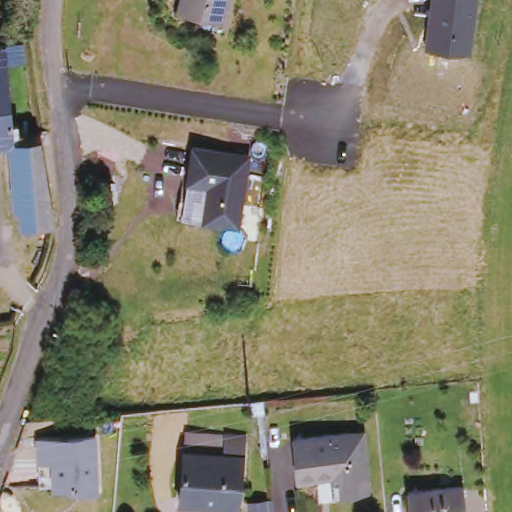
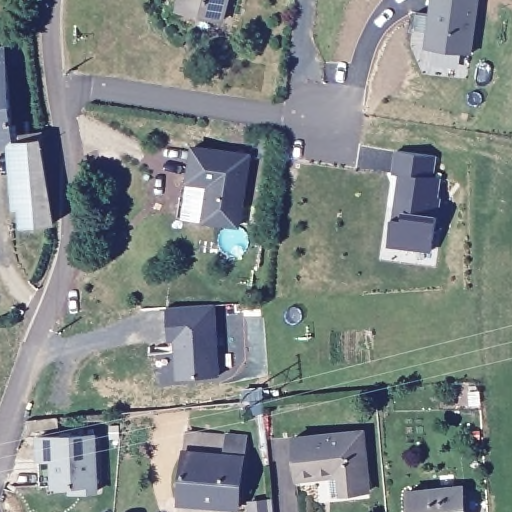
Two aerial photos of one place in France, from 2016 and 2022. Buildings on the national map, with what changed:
unchanged [(180,6),(181,0),(225,0),(219,24),(203,20),(204,14),(180,6)]
unchanged [(424,47),(429,0),(477,0),(471,54),(424,47)]
unchanged [(0,143),(0,49),(1,49),(12,142),(0,143)]
unchanged [(28,229),(25,205),(19,206),(12,142),(44,139),(56,226),(28,229)]
unchanged [(248,152),(238,223),(204,218),(183,215),(193,145),(248,152)]
new [(436,157),(434,178),(440,179),(438,197),(439,199),(437,216),(431,251),(390,245),(394,221),(394,212),(399,174),(393,174),(396,151),(436,157)]
new [(166,307),(214,305),(220,376),(176,377),(174,342),(169,342),(166,307)]
unchanged [(366,431),(371,490),(345,491),(343,472),(299,476),(296,437),(366,431)]
unchanged [(76,486),(57,486),(43,486),(43,437),(100,436),(100,492),(88,492),(76,492),(76,486)]
unchanged [(241,438),(236,505),(202,503),(202,507),(181,506),(187,436),(241,438)]
unchanged [(467,487),(470,512),(414,512),(412,492),(467,487)]
unchanged [(264,504),(264,512),(247,512),(246,504),(264,504)]

